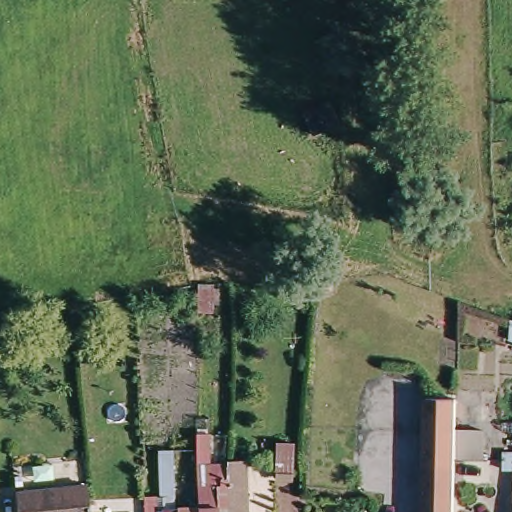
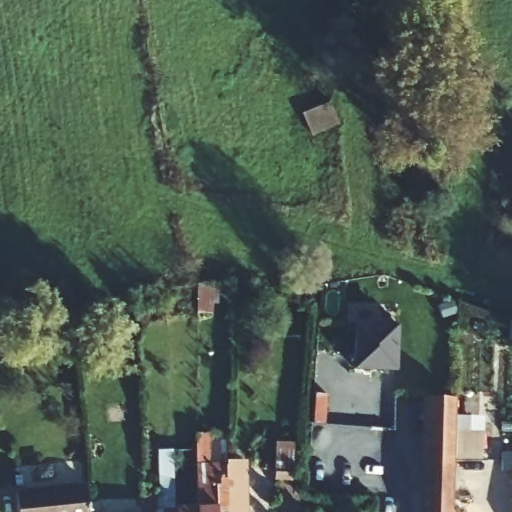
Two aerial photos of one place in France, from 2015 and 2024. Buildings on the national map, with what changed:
new [(399,326),(394,371),(352,373),(355,326),(399,326)]
unchanged [(453,460),(452,512),(418,512),(420,398),(453,398),(453,429),(483,431),(482,461),(453,460)]
unchanged [(183,504),(182,479),(191,479),(191,461),(198,461),(197,431),(206,432),(208,431),(209,462),(227,462),(227,465),(245,465),(246,512),(164,512),(164,505),(176,504),(183,504)]
unchanged [(273,476),(273,470),(274,448),(290,448),(289,479),(273,478),(273,476)]
unchanged [(87,484),(90,512),(17,512),(15,491),(87,484)]
unchanged [(155,493),(156,512),(144,512),(143,493),(155,493)]

